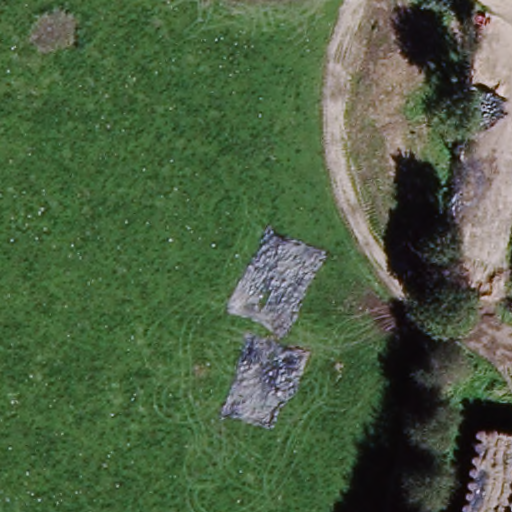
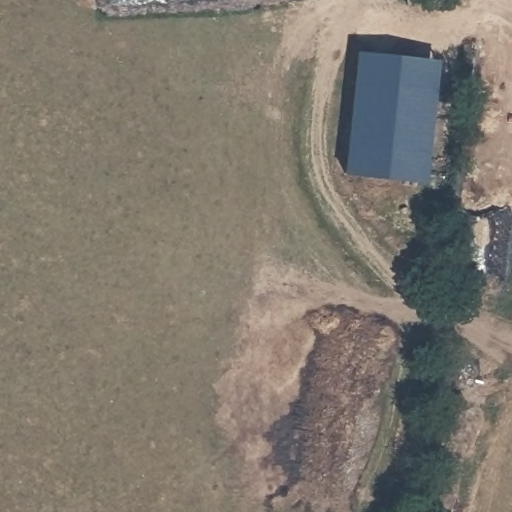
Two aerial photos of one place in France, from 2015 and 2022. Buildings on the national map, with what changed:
new [(441,63),(428,186),(344,178),(356,54),(441,63)]

